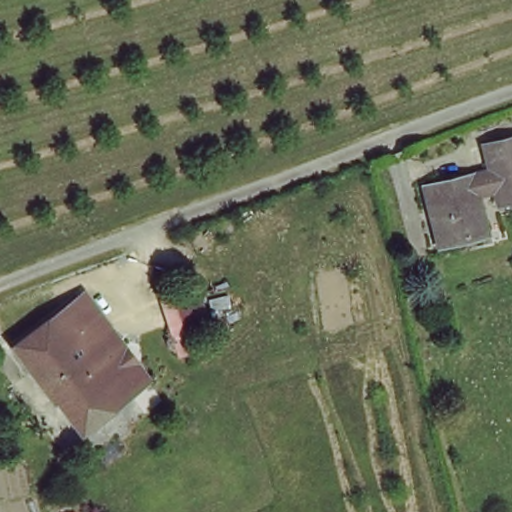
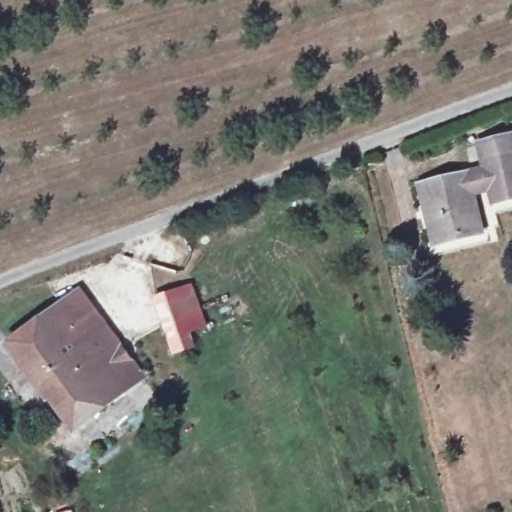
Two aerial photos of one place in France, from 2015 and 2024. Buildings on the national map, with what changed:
unchanged [(479,148),(512,141),(512,200),(491,205),(488,192),(470,196),(476,229),(431,238),(418,185),(484,171),(479,148)]
unchanged [(210,340),(165,354),(148,294),(194,280),(210,340)]
unchanged [(115,396),(82,418),(63,432),(50,413),(38,397),(0,343),(0,337),(26,321),(51,305),(70,293),(110,348),(133,384),(115,396)]

